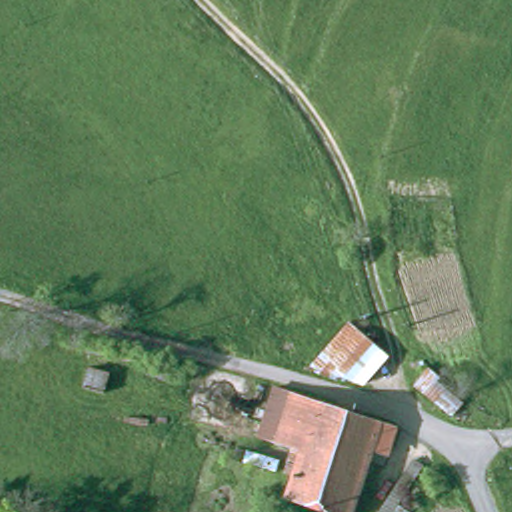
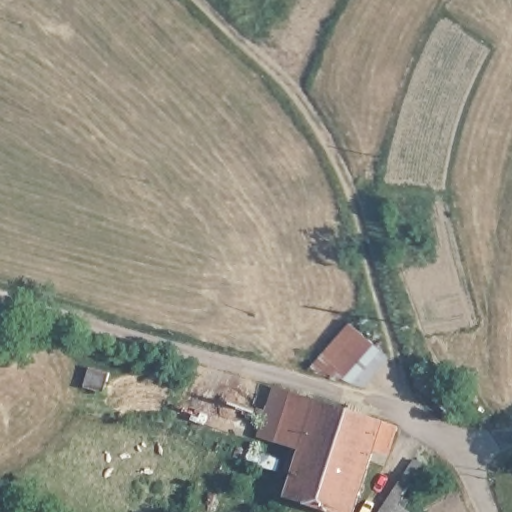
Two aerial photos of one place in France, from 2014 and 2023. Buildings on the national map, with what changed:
unchanged [(357,389),(310,371),(347,329),(380,359),(385,363),(382,366),(357,389)]
unchanged [(112,385),(94,380),(100,361),(118,366),(112,385)]
unchanged [(429,369),(469,401),(455,420),(412,391),(429,369)]
unchanged [(275,390),(294,398),(277,448),(259,442),(275,390)]
unchanged [(397,433),(389,456),(372,451),(351,512),(317,512),(283,500),(290,480),(282,477),(290,453),(277,448),(294,398),(397,433)]
unchanged [(397,500),(417,473),(425,479),(405,505),(415,512),(389,512),(397,500)]

